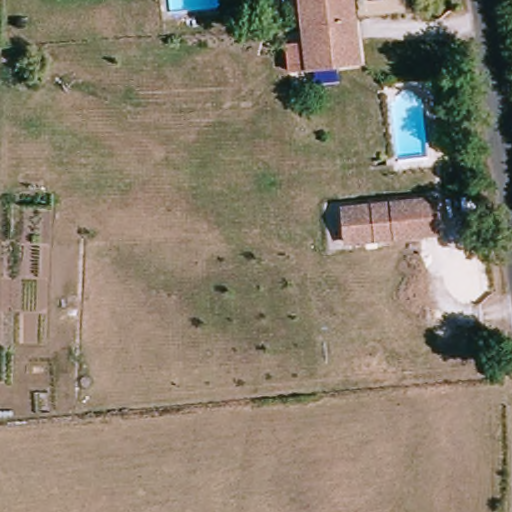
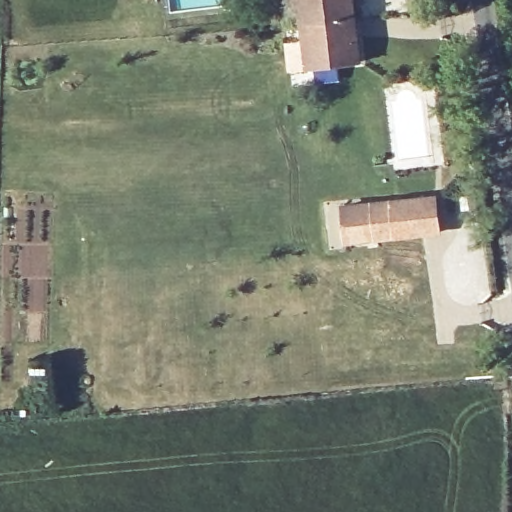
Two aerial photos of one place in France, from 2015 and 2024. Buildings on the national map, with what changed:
unchanged [(302,25),(299,0),(354,0),(356,20),(302,25)]
unchanged [(302,25),(356,20),(360,64),(306,70),(302,25)]
unchanged [(306,70),(288,72),(285,42),(304,40),(306,70)]
unchanged [(429,199),(434,233),(342,244),(339,210),(429,199)]

